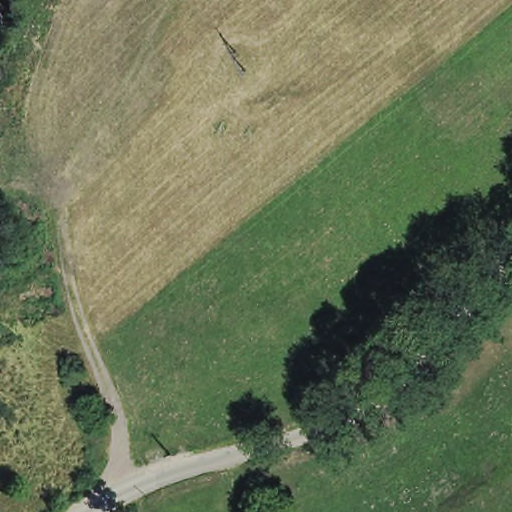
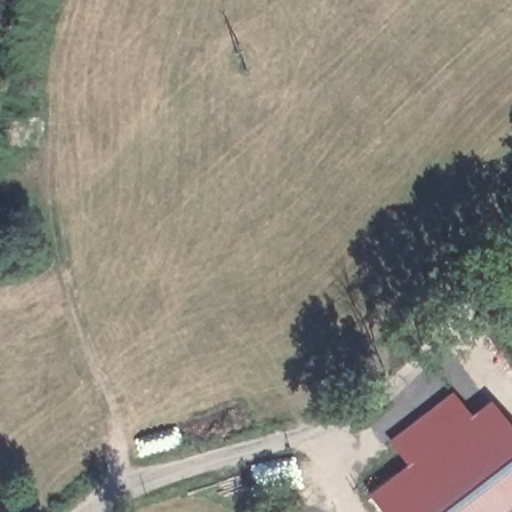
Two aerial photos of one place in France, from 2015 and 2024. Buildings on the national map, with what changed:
new [(472,415),(490,399),(512,428),(512,509),(509,512),(384,512),(370,493),(405,465),(389,438),(453,393),(472,415)]

